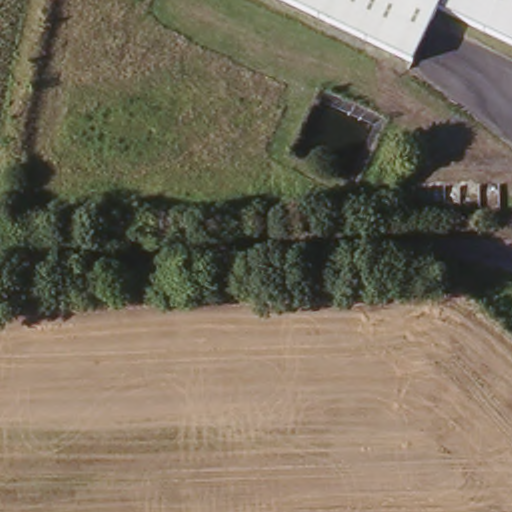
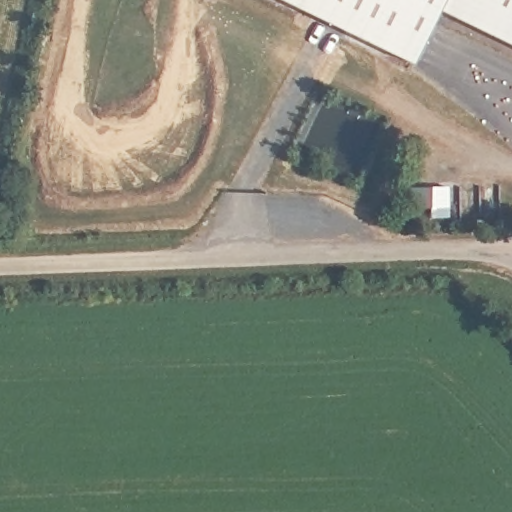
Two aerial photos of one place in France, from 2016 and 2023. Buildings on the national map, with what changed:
unchanged [(437,3),(409,58),(290,0),(439,0),(437,3)]
unchanged [(439,0),(512,0),(512,47),(435,8),(437,3),(439,0)]

